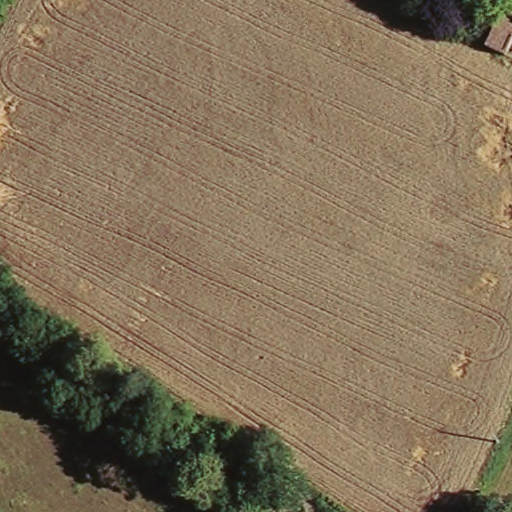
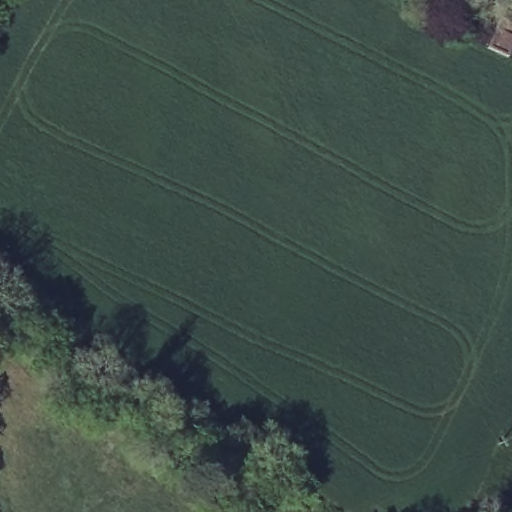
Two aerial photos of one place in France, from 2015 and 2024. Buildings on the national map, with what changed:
unchanged [(499,23),(512,30),(512,46),(506,59),(485,49),(499,23)]

